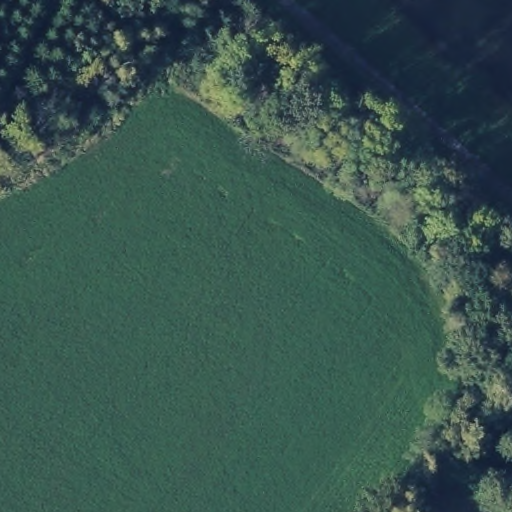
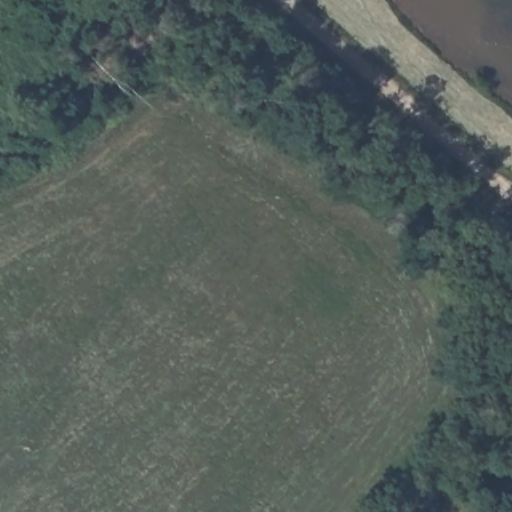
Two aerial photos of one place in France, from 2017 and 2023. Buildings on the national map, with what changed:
unchanged [(485,461),(467,448),(491,416),(510,426),(485,461)]

